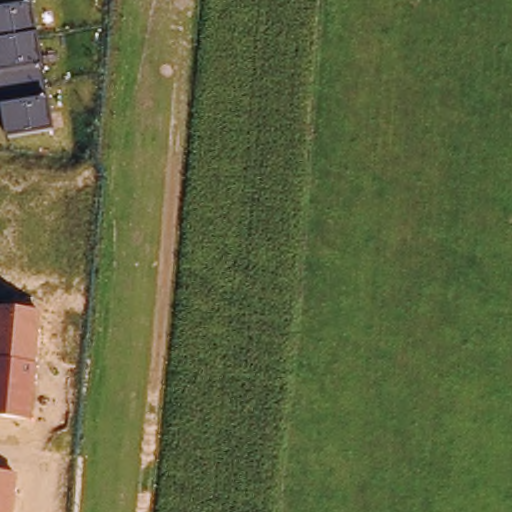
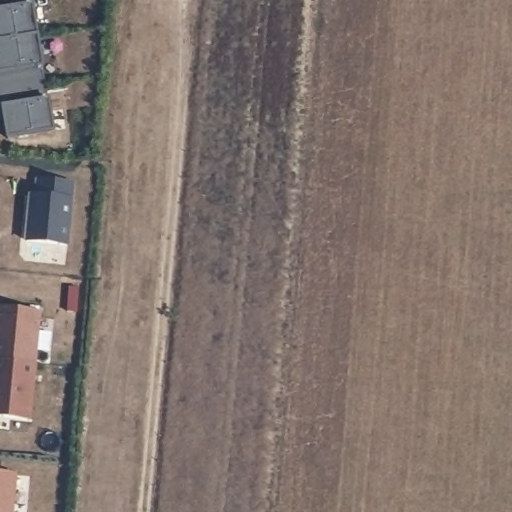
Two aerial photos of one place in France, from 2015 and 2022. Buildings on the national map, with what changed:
unchanged [(0,117),(0,0),(32,0),(55,129),(6,139),(0,117)]
new [(78,182),(75,198),(70,246),(25,242),(30,194),(38,177),(78,182)]
unchanged [(0,417),(0,307),(41,310),(33,421),(0,417)]
unchanged [(18,472),(15,512),(0,512),(0,470),(18,472)]

